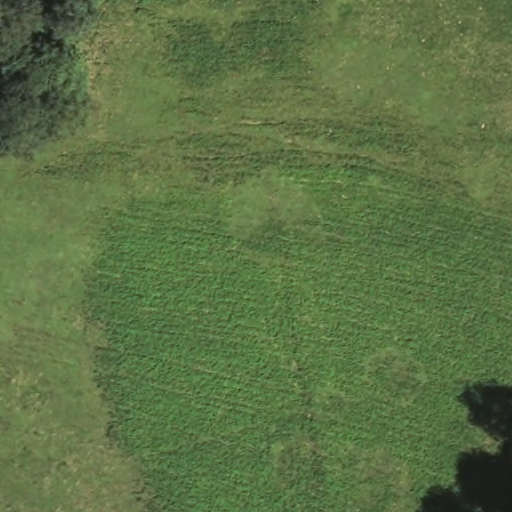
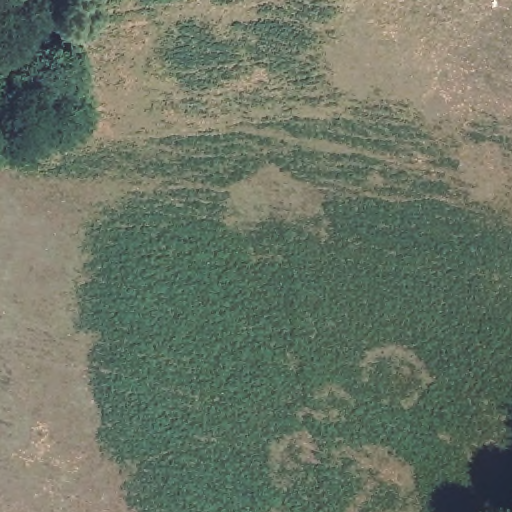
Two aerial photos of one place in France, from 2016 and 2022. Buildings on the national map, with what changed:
[]

